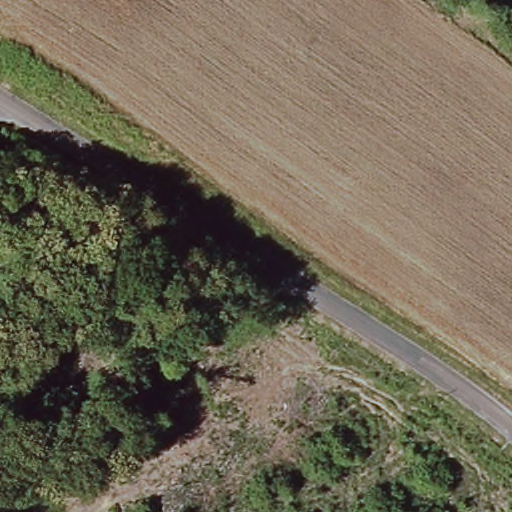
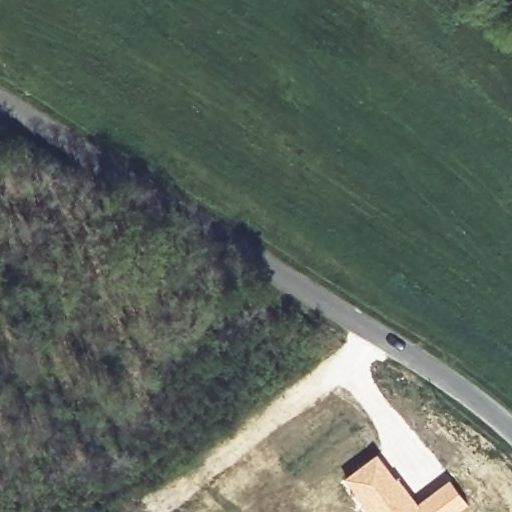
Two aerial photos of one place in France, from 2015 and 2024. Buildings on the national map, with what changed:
new [(417,501),(448,478),(468,503),(457,512),(363,512),(342,480),(377,451),(417,501)]

